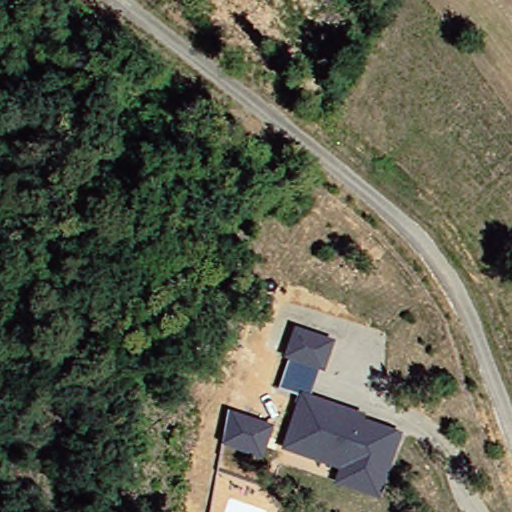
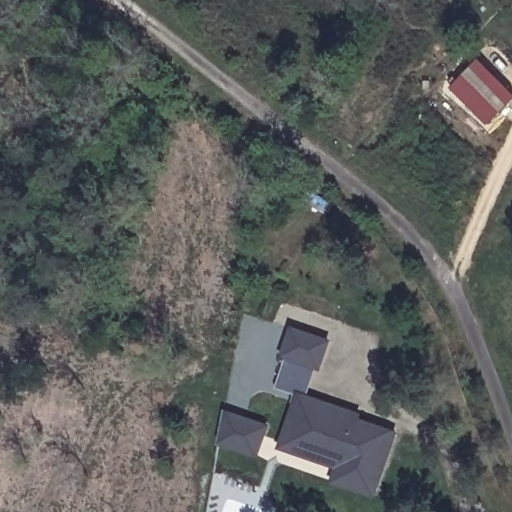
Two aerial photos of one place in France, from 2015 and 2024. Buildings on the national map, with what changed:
new [(482,60),(512,92),(512,102),(486,127),(451,89),(482,60)]
unchanged [(333,340),(322,372),(316,370),(307,396),(365,416),(363,420),(400,432),(377,501),(331,484),(336,470),(277,451),(296,396),(275,390),(285,361),(280,358),(292,327),(333,340)]
unchanged [(271,425),(261,461),(219,447),(224,408),(271,425)]

